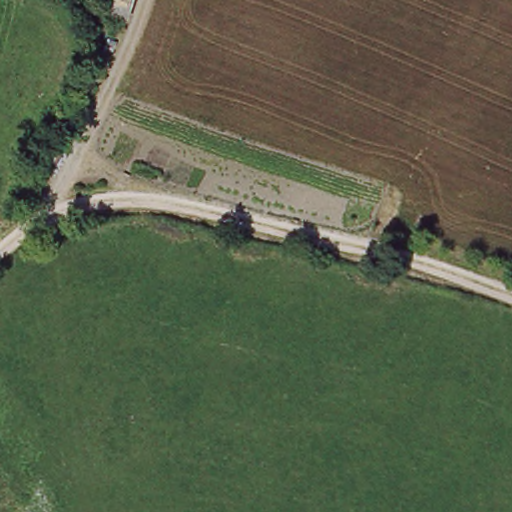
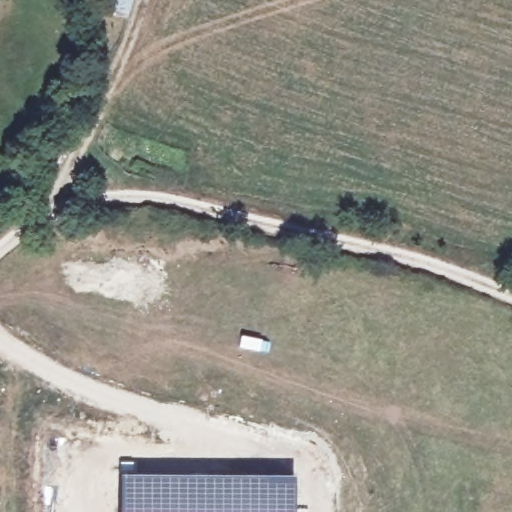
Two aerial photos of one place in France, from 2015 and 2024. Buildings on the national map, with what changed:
unchanged [(126,17),(98,6),(99,0),(131,0),(126,17)]
new [(295,475),(296,512),(120,512),(121,473),(295,475)]

